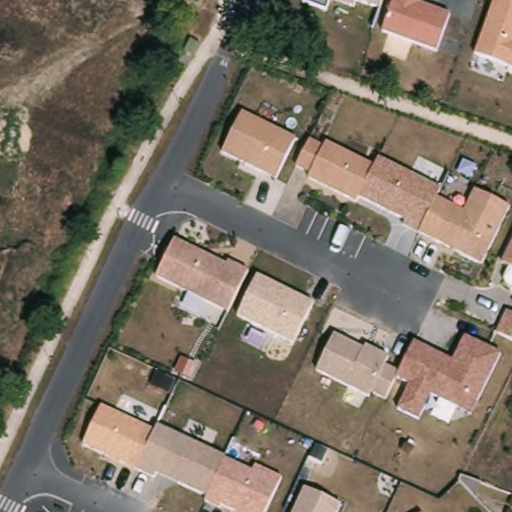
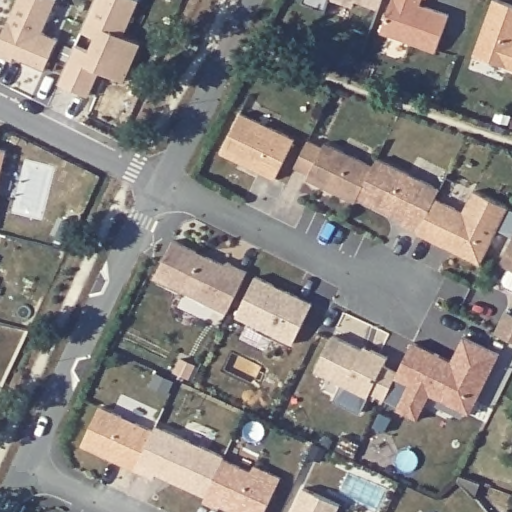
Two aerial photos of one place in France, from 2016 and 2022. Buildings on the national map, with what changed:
new [(57,0),(43,32),(58,39),(45,68),(15,55),(13,60),(0,54),(0,41),(18,0),(57,0)]
new [(123,38),(140,46),(123,84),(99,73),(88,98),(58,85),(75,46),(89,53),(95,39),(81,33),(96,0),(134,0),(139,2),(123,38)]
unchanged [(331,1),(327,13),(304,5),(306,0),(355,0),(353,9),(331,1)]
unchanged [(355,0),(382,0),(380,8),(355,0)]
unchanged [(450,15),(437,51),(382,32),(393,0),(423,0),(422,4),(450,15)]
unchanged [(475,56),(494,0),(497,0),(512,6),(512,69),(475,56)]
unchanged [(295,141),(278,182),(224,156),(242,113),(295,141)]
unchanged [(323,146),(325,143),(374,166),(377,159),(442,190),(439,201),(464,214),(473,190),(510,207),(482,265),(404,228),(405,225),(310,181),(311,178),(297,171),(310,140),(323,146)]
new [(0,179),(0,149),(7,150),(0,179)]
unchanged [(246,274),(230,315),(157,282),(174,240),(246,274)]
unchanged [(503,266),(512,246),(512,270),(503,266)]
unchanged [(314,303),(296,345),(239,320),(257,278),(314,303)]
unchanged [(512,316),(512,344),(497,338),(506,313),(512,316)]
unchanged [(363,351),(366,348),(390,359),(387,366),(398,371),(383,403),(317,376),(333,336),(363,351)]
unchanged [(453,363),(462,337),(498,352),(473,414),(430,396),(420,421),(399,412),(410,386),(400,381),(414,343),(453,363)]
unchanged [(267,512),(232,512),(159,476),(156,482),(84,447),(102,406),(153,432),(155,426),(252,473),(255,464),(282,478),(267,512)]
unchanged [(478,482),(490,487),(489,505),(475,490),(478,482)]
unchanged [(340,505),(337,512),(294,512),(303,489),(340,505)]

